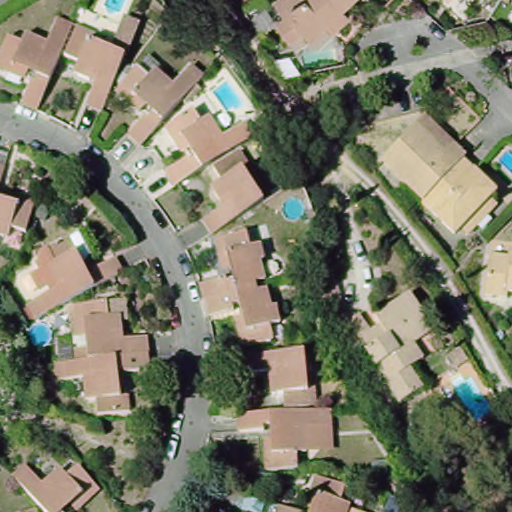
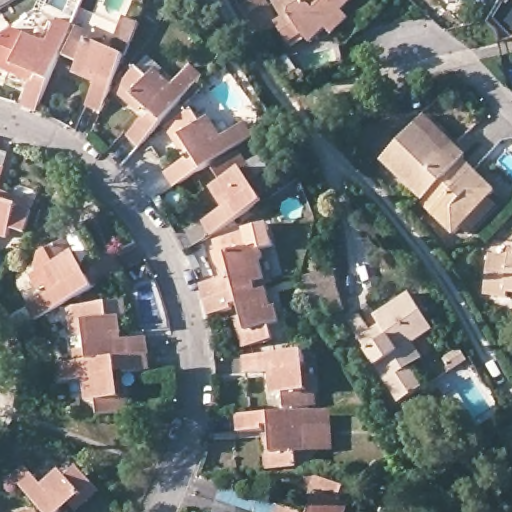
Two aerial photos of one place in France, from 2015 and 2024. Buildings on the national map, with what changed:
unchanged [(349,23),(332,38),(326,33),(311,48),(302,40),(288,48),(276,28),(282,23),(273,7),(286,0),(360,0),(343,17),(349,23)]
unchanged [(444,0),(454,0),(449,4),(444,0)]
unchanged [(470,0),(475,0),(472,2),(470,0)]
unchanged [(511,0),(512,0),(512,13),(505,9),(511,0)]
unchanged [(0,71),(3,66),(15,41),(27,46),(31,38),(52,47),(60,30),(64,23),(77,29),(75,37),(43,114),(27,109),(37,86),(40,87),(43,80),(41,75),(35,73),(32,77),(30,82),(0,71)]
unchanged [(79,79),(83,67),(71,61),(80,38),(83,31),(111,43),(108,50),(107,55),(113,59),(119,57),(128,60),(105,116),(92,110),(100,87),(99,87),(92,84),(79,79)]
unchanged [(154,60),(169,73),(166,77),(179,89),(196,70),(209,81),(144,151),(132,140),(149,121),(153,123),(158,118),(158,112),(153,108),(149,112),(144,117),(120,96),(125,91),(142,72),(154,60)]
unchanged [(206,126),(214,121),(227,141),(244,130),(250,126),(258,142),(252,146),(178,192),(170,177),(192,163),(194,167),(200,164),(202,157),(197,151),(193,154),(185,159),(170,132),(177,127),(198,114),(206,126)]
unchanged [(418,205),(376,166),(419,122),(460,161),(456,165),(418,205)]
unchanged [(214,193),(225,185),(218,173),(238,160),(244,156),(262,182),(255,186),(251,190),(255,196),(261,195),(267,206),(215,240),(206,227),(226,213),(227,212),(222,205),(214,193)]
unchanged [(464,241),(456,233),(450,238),(416,207),(418,205),(456,165),(490,197),(485,203),(492,210),(464,241)]
unchanged [(41,207),(32,239),(17,235),(13,245),(0,242),(0,171),(10,174),(3,195),(41,207)]
unchanged [(245,321),(252,319),(249,313),(242,310),(237,311),(237,316),(213,322),(209,305),(205,289),(230,282),(231,287),(236,285),(242,278),(239,272),(234,273),(225,276),(218,246),(226,244),(250,239),(254,252),(266,249),(269,266),(265,267),(270,286),(262,288),(263,295),(272,293),(276,312),(282,311),(286,328),(289,342),(278,345),(253,351),(245,353),(237,322),(245,321)]
unchanged [(32,311),(61,295),(55,285),(47,289),(41,279),(50,274),(46,268),(48,259),(73,245),(84,240),(96,262),(90,272),(88,273),(85,275),(87,281),(94,282),(99,279),(97,276),(120,263),(128,278),(40,326),(32,311)]
unchanged [(506,303),(484,299),(489,259),(508,261),(508,253),(512,254),(512,299),(507,298),(506,303)]
unchanged [(343,309),(315,318),(303,278),(332,270),(343,309)]
unchanged [(411,372),(423,392),(399,408),(347,327),(360,319),(370,335),(378,329),(375,323),(411,300),(433,336),(414,348),(424,365),(411,372)]
unchanged [(127,417),(103,421),(100,405),(91,406),(88,384),(70,385),(62,386),(60,370),(67,369),(79,367),(77,355),(92,353),(89,342),(82,343),(79,312),(112,308),(115,323),(126,322),(128,337),(129,344),(151,342),(155,375),(128,379),(128,375),(121,376),(117,380),(118,388),(124,388),(132,387),(135,416),(127,417)]
unchanged [(321,411),(314,412),(291,413),(288,399),(274,399),(272,383),(272,376),(249,378),(248,361),(308,357),(310,369),(304,375),(305,380),(310,380),(319,380),(321,411)]
unchanged [(266,444),(275,443),(279,443),(278,435),(273,431),(267,431),(268,435),(242,437),(242,421),(327,416),(336,416),(337,432),(328,433),(310,434),(311,458),(301,458),(301,473),(277,475),(267,476),(266,444)]
unchanged [(70,512),(44,512),(22,487),(17,481),(28,471),(34,476),(47,489),(64,475),(72,483),(83,473),(98,490),(104,497),(88,512),(77,512),(76,511),(73,509),(70,512)]
unchanged [(309,511),(319,481),(326,483),(349,491),(344,506),(355,510),(354,512),(311,512),(309,511)]
unchanged [(284,510),(290,512),(284,512),(284,510)]

